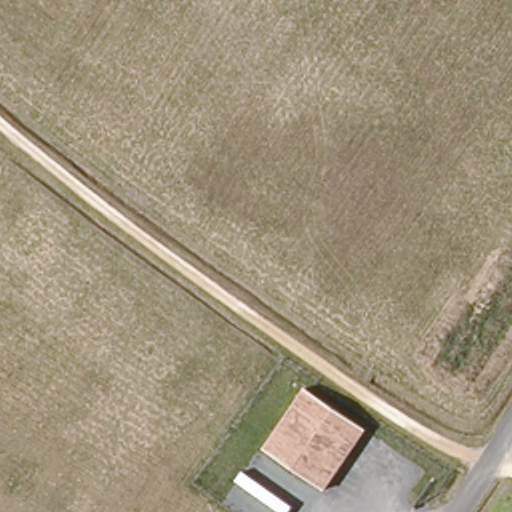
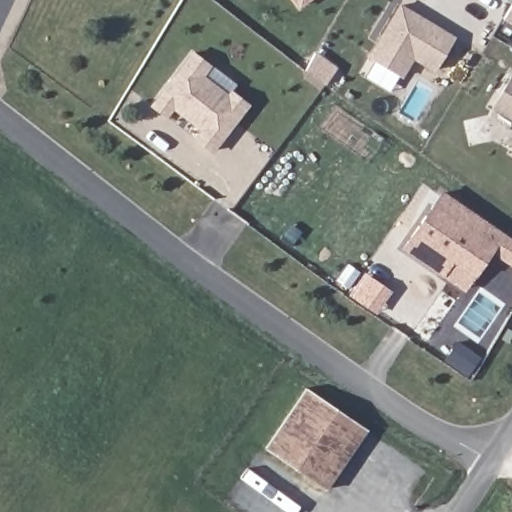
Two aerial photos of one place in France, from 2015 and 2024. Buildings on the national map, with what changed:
new [(295,0),(306,0),(300,5),(295,0)]
new [(414,59),(402,77),(368,56),(400,4),(456,37),(436,72),(414,59)]
new [(502,19),(512,4),(512,26),(502,19)]
new [(325,84),(305,70),(317,52),(337,66),(325,84)]
new [(177,113),(170,121),(156,110),(197,56),(214,70),(206,80),(232,100),(236,96),(252,109),(216,156),(199,144),(206,135),(197,129),(185,119),(177,113)]
new [(492,106),(512,71),(512,118),(492,106)]
new [(511,151),(512,148),(512,152),(511,151)]
new [(491,251),(475,273),(452,259),(442,274),(405,247),(442,192),(512,240),(512,264),(491,251)]
unchanged [(327,487),(259,449),(297,385),(365,421),(327,487)]

